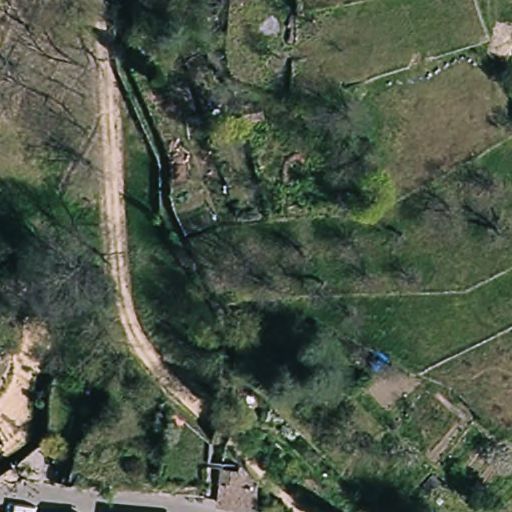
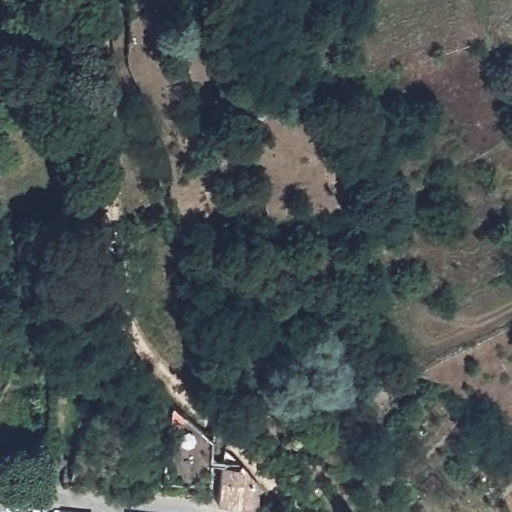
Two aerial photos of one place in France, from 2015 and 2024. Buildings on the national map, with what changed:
unchanged [(94,365),(113,369),(107,396),(86,389),(94,365)]
unchanged [(222,464),(234,464),(258,487),(258,512),(253,512),(216,508),(222,464)]

